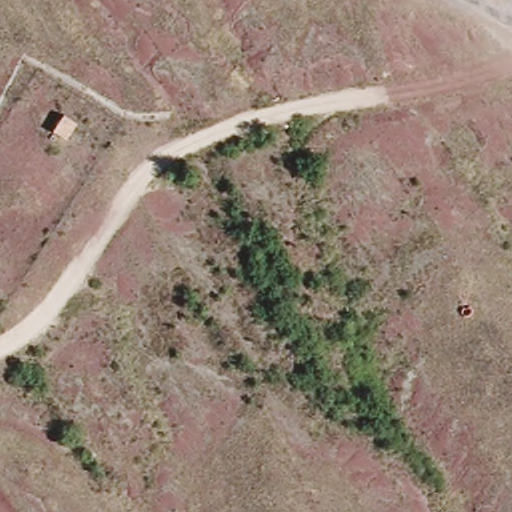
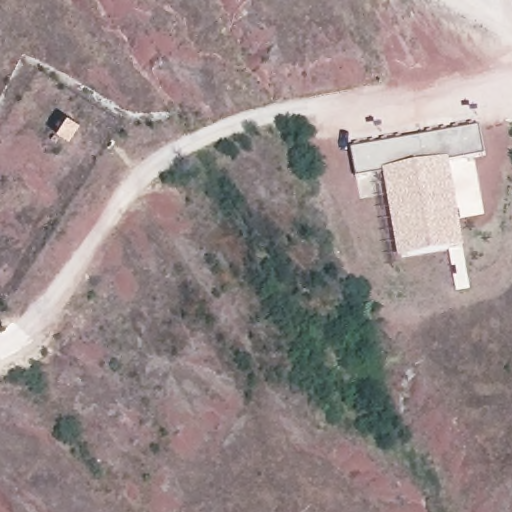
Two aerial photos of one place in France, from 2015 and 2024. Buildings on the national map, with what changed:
unchanged [(77,120),(68,138),(57,128),(67,113),(77,120)]
new [(487,154),(450,161),(467,249),(401,259),(386,174),(358,179),(352,149),(481,126),(487,154)]

